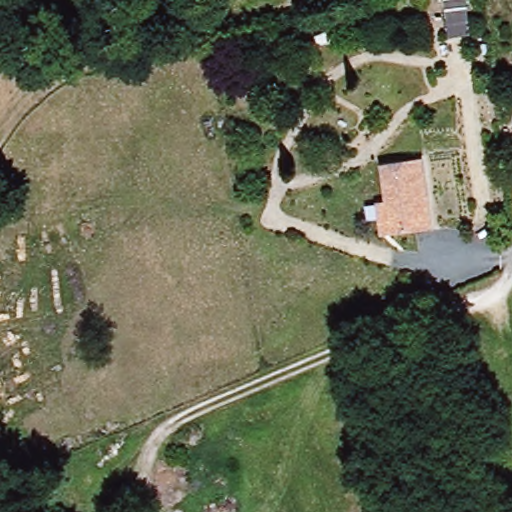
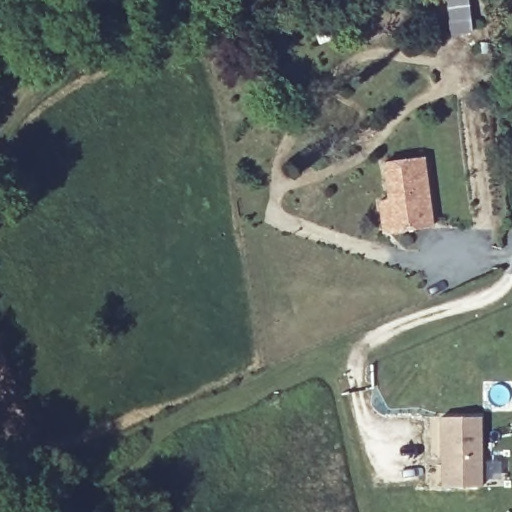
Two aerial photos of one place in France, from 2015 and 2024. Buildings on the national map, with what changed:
unchanged [(443,30),(440,0),(461,0),(464,27),(443,30)]
unchanged [(379,204),(389,202),(383,164),(422,157),(433,229),(394,234),(384,235),(379,204)]
new [(479,487),(441,487),(441,418),(479,418),(479,487)]

